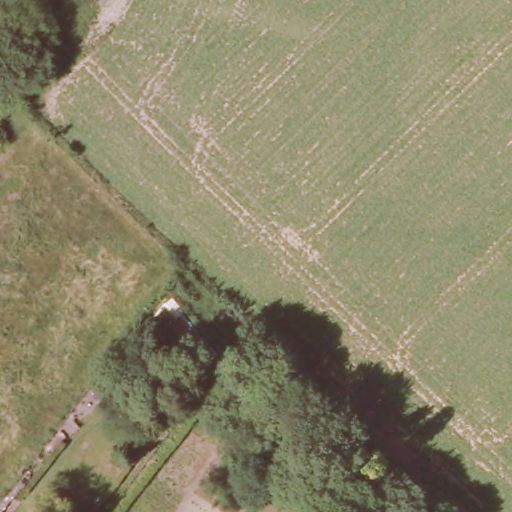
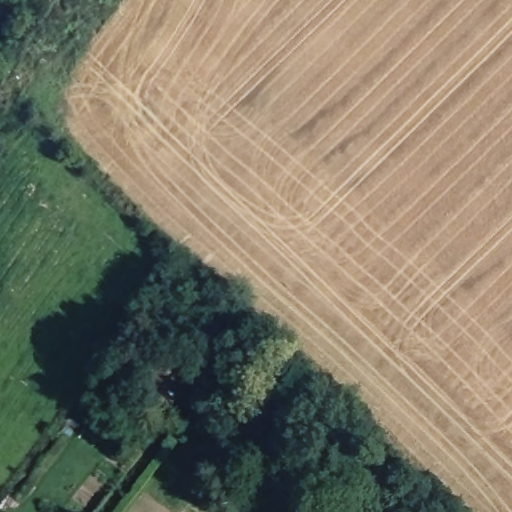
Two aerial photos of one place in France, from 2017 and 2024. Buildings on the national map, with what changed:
unchanged [(176,299),(190,314),(175,325),(162,314),(150,321),(141,311),(165,288),(176,299)]

